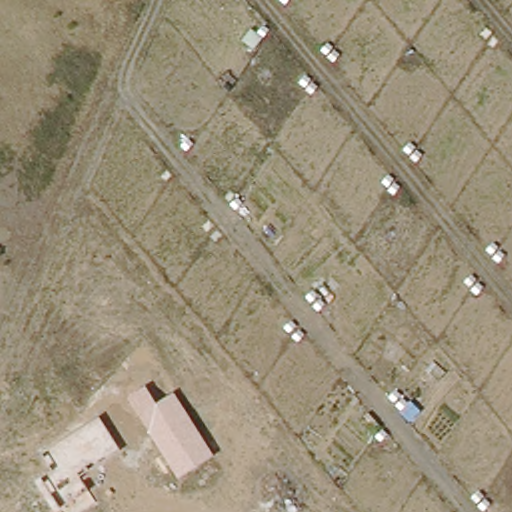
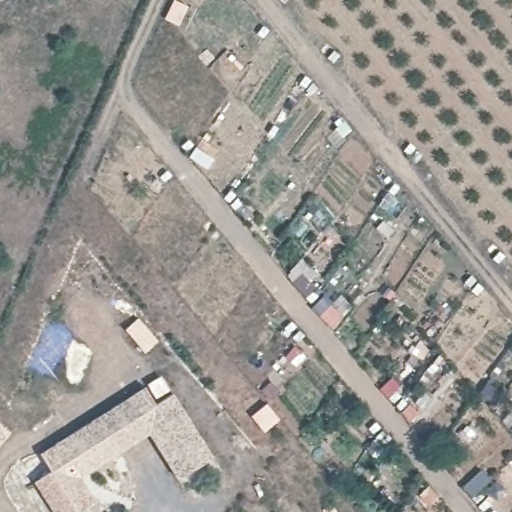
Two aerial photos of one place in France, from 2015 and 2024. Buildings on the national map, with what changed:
unchanged [(126,398),(146,386),(157,405),(175,394),(214,457),(178,478),(126,398)]
new [(81,477),(99,501),(82,512),(55,512),(35,481),(52,470),(41,454),(126,398),(149,433),(81,477)]

